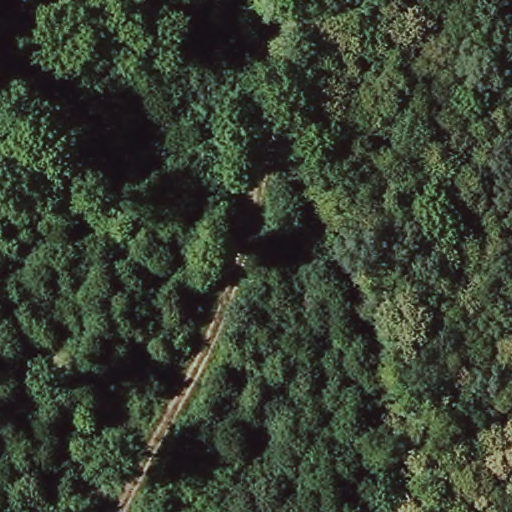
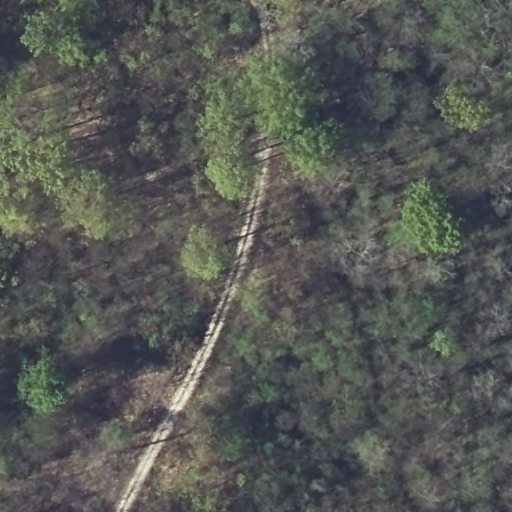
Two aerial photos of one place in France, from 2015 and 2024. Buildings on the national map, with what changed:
[]

